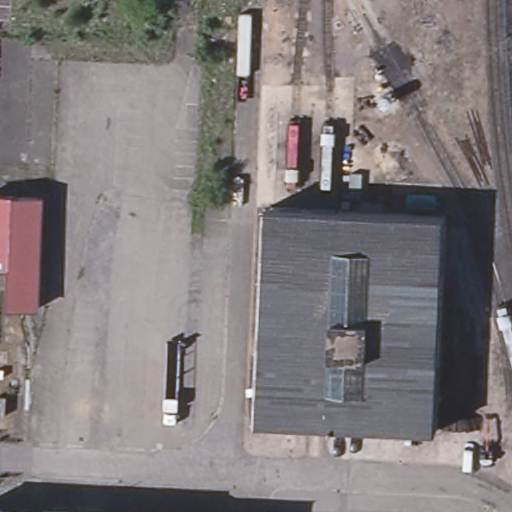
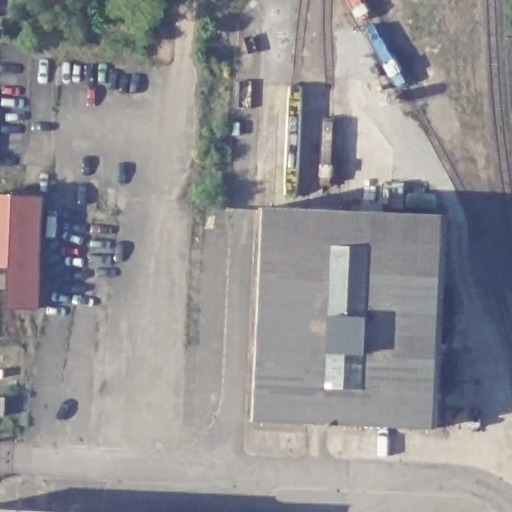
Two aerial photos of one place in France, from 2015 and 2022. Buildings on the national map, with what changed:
unchanged [(385,215),(387,186),(441,189),(442,189),(442,190),(440,218),(385,215)]
unchanged [(49,193),(40,309),(2,305),(6,266),(0,265),(0,188),(49,193)]
unchanged [(319,213),(385,215),(440,218),(447,219),(437,432),(311,426),(257,424),(266,210),(319,213)]
unchanged [(53,508),(98,510),(142,511),(159,512),(0,512),(0,507),(53,508)]

